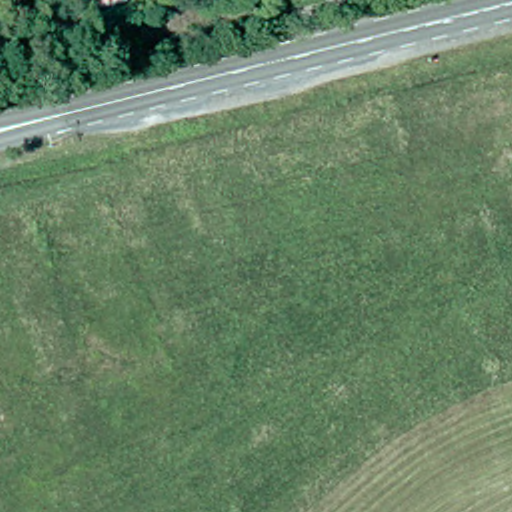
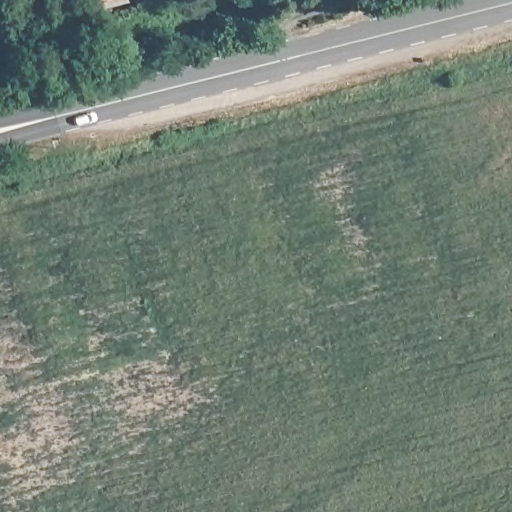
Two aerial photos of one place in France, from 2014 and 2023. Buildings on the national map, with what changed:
unchanged [(94,7),(92,0),(122,0),(94,7)]

